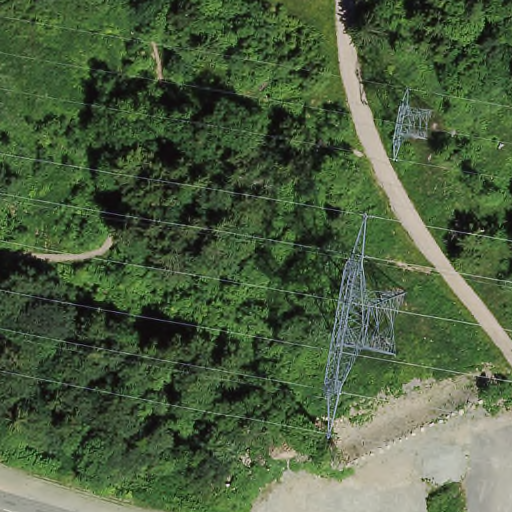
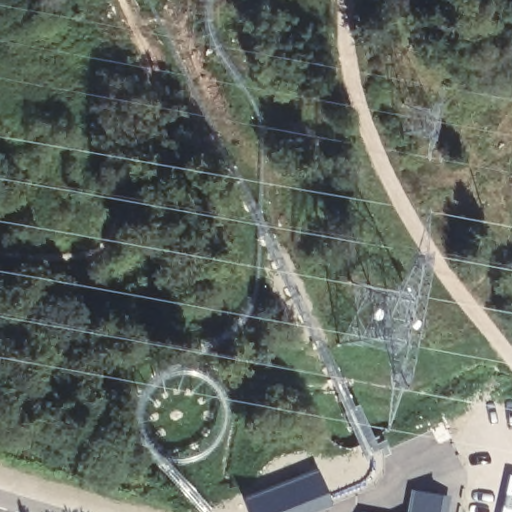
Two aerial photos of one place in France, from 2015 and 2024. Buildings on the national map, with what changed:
new [(315,470),(330,508),(320,512),(245,512),(241,499),(315,470)]
new [(447,512),(405,512),(410,492),(450,498),(447,512)]

